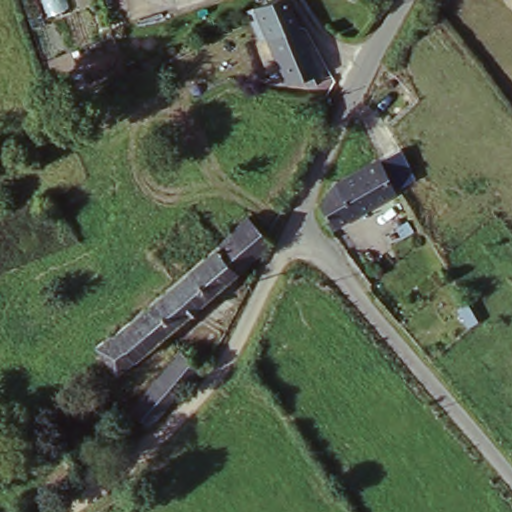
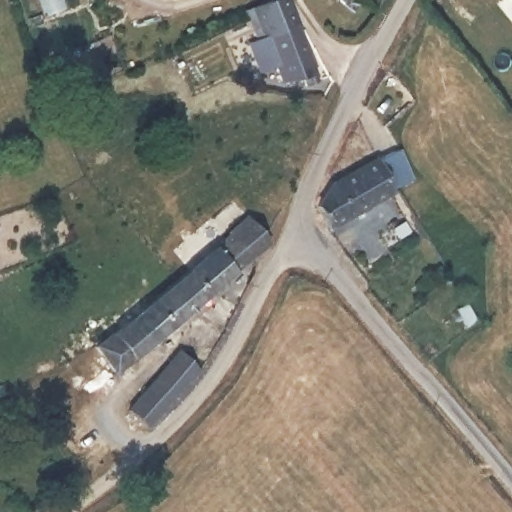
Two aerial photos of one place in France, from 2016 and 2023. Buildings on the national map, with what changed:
unchanged [(299,82),(289,86),(262,25),(254,7),(265,0),(286,0),(291,12),(302,41),(322,81),(319,94),(306,99),(299,82)]
unchanged [(380,152),(394,142),(415,171),(399,182),(339,220),(334,190),(352,170),(380,152)]
unchanged [(211,239),(244,207),(269,235),(235,265),(211,239)]
unchanged [(99,343),(119,325),(211,239),(235,265),(119,372),(99,343)]
unchanged [(134,400),(149,384),(184,347),(201,363),(148,420),(134,400)]

